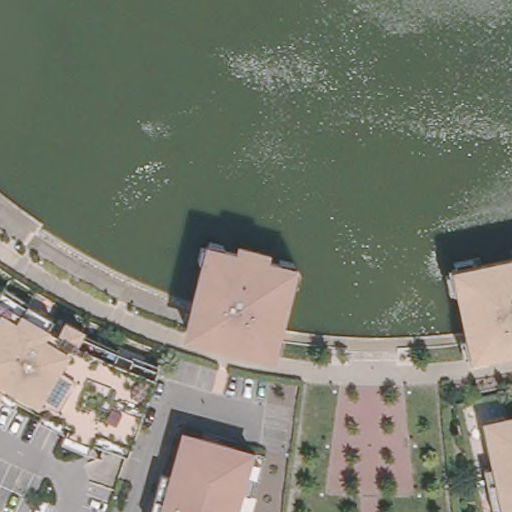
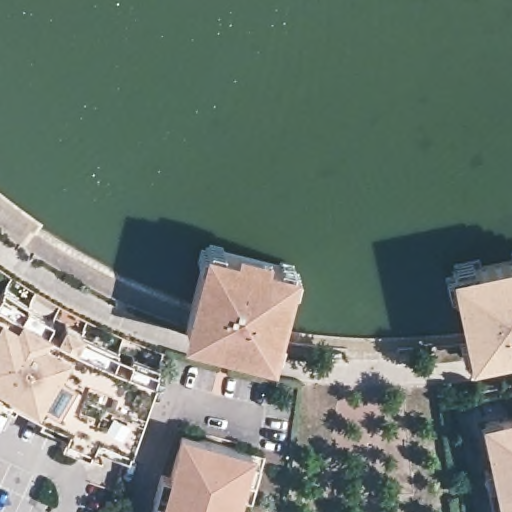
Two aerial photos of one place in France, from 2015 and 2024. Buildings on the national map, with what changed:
unchanged [(260,341),(247,338),(245,346),(214,338),(216,330),(187,323),(204,255),(199,255),(202,241),(207,242),(209,241),(211,236),(224,240),(222,244),(222,245),(281,259),(282,254),(294,257),(293,262),(295,262),(295,265),(300,265),(296,278),(292,277),(278,330),(283,331),(280,346),(275,345),(274,350),(259,346),(260,341)]
unchanged [(473,333),(463,290),(455,291),(451,275),(459,273),(462,273),(461,270),(460,262),(477,258),(479,266),(472,269),(479,267),(512,260),(512,326),(473,333)]
unchanged [(29,297),(28,298),(54,313),(48,323),(60,330),(68,315),(84,323),(83,325),(120,341),(119,343),(114,355),(127,360),(132,349),(159,360),(155,371),(132,437),(128,448),(93,436),(76,432),(92,438),(89,447),(62,435),(65,426),(39,414),(43,406),(22,395),(19,394),(14,401),(0,393),(0,287),(5,281),(29,297)]
unchanged [(481,361),(480,361),(479,357),(478,355),(474,337),(473,333),(512,326),(512,350),(488,355),(489,359),(481,361)]
unchanged [(465,340),(473,337),(478,355),(477,355),(469,357),(465,340)]
unchanged [(509,505),(500,507),(494,479),(491,464),(500,462),(495,440),(492,441),(487,420),(487,418),(492,417),(492,413),(503,411),(504,415),(512,413),(512,504),(509,505)]
unchanged [(160,493),(167,468),(177,470),(189,427),(258,446),(256,452),(265,455),(261,471),(256,487),(247,485),(239,512),(154,512),(156,508),(160,493)]

